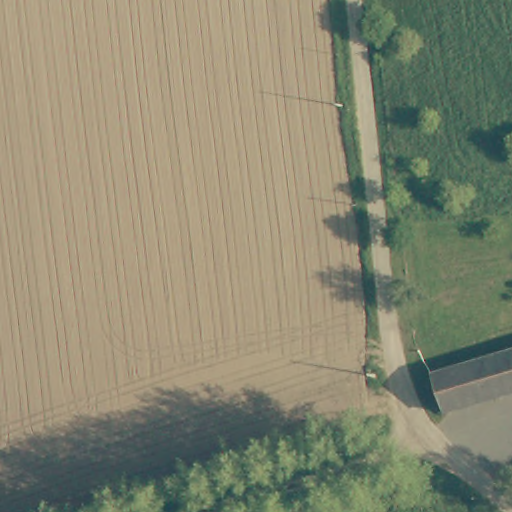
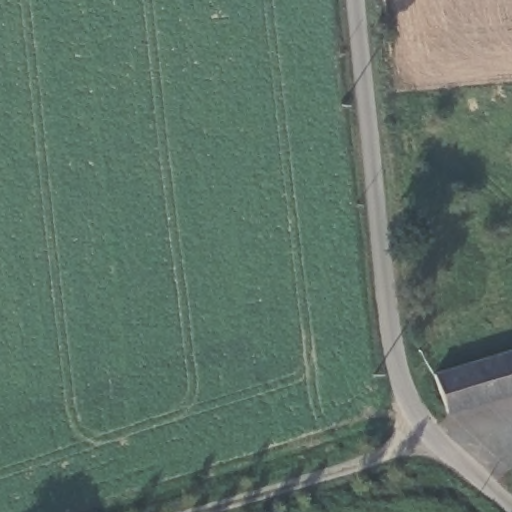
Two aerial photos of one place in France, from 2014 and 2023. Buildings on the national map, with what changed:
unchanged [(512,392),(445,414),(435,377),(512,352),(512,392)]

